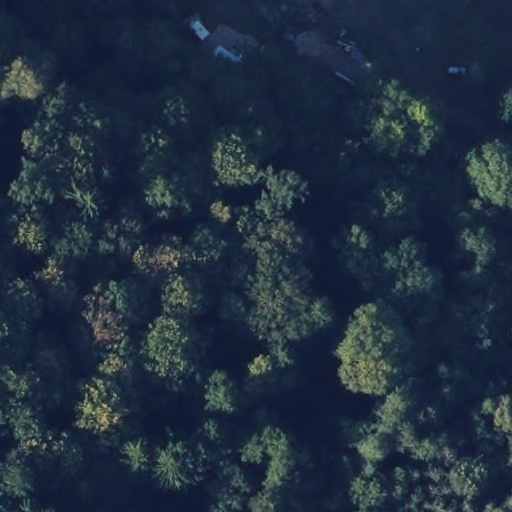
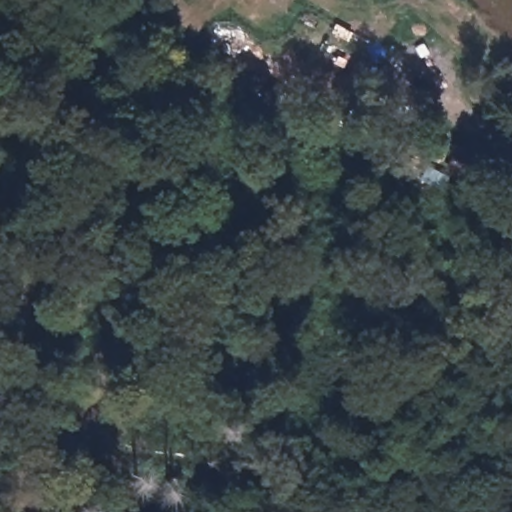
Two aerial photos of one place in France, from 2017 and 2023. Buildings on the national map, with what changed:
unchanged [(433,126),(448,137),(438,150),(423,141),(433,126)]

